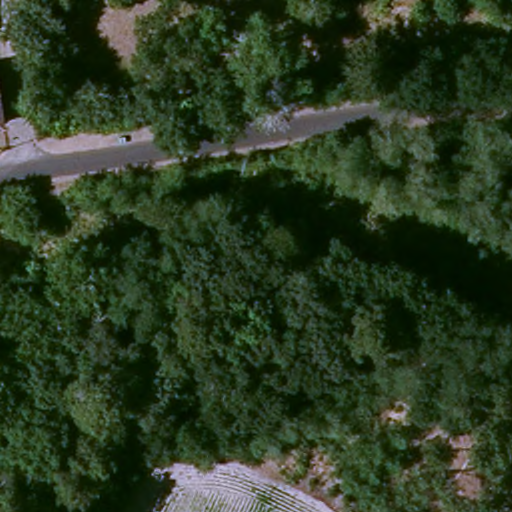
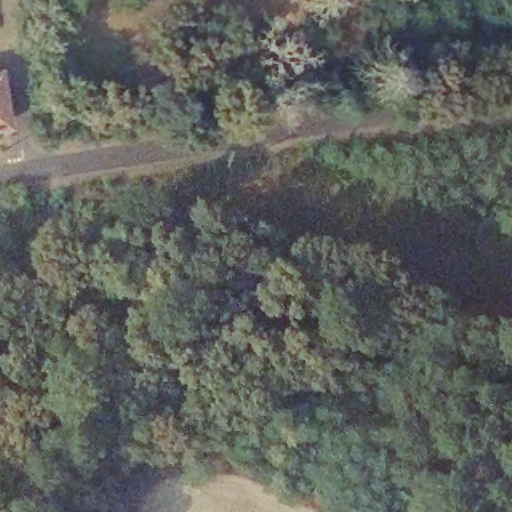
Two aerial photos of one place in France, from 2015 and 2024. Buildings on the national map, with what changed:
unchanged [(0,127),(0,71),(1,71),(10,126),(0,127)]

